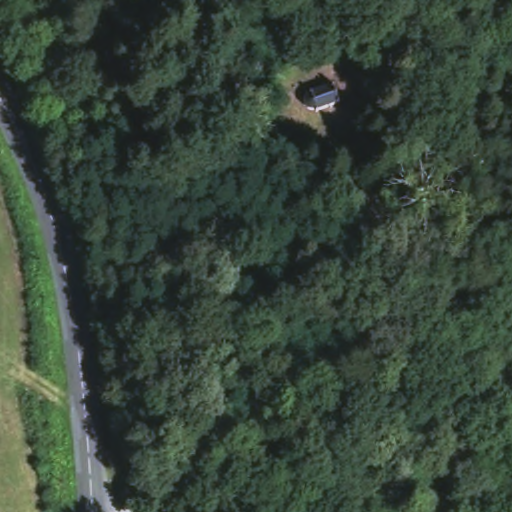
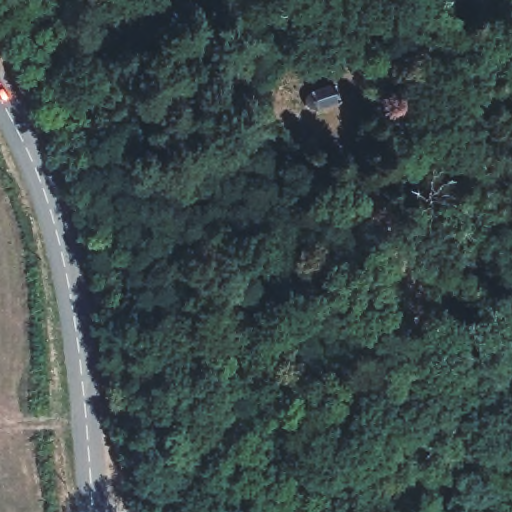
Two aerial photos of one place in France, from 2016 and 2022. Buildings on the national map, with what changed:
unchanged [(335,80),(343,99),(320,108),(310,106),(307,98),(312,89),(335,80)]

